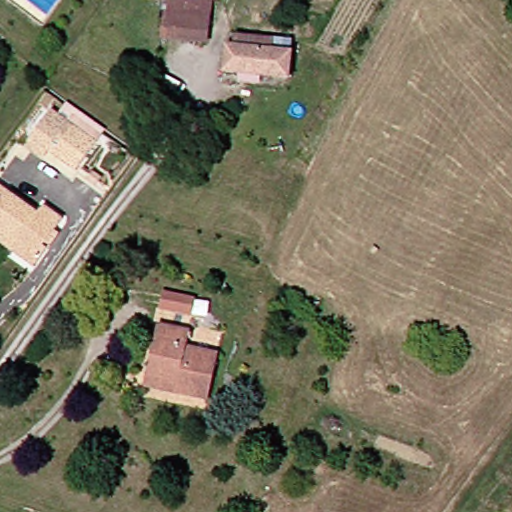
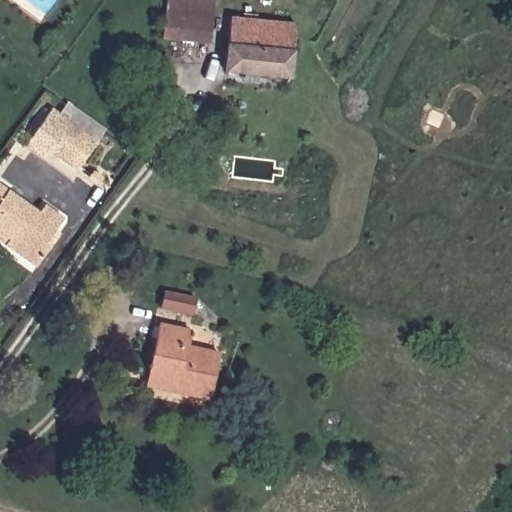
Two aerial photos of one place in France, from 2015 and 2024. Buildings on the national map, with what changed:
unchanged [(199,40),(157,36),(157,27),(161,0),(203,0),(199,40)]
unchanged [(236,84),(236,75),(223,74),(226,47),(234,47),(234,40),(267,42),(266,51),(286,53),(284,79),(254,76),(253,85),(236,84)]
unchanged [(81,141),(60,170),(22,141),(41,115),(81,141)]
unchanged [(28,209),(33,201),(52,214),(26,251),(32,256),(25,263),(0,245),(0,189),(28,209)]
unchanged [(139,381),(152,330),(187,340),(185,350),(214,358),(201,408),(165,399),(136,391),(139,381)]

